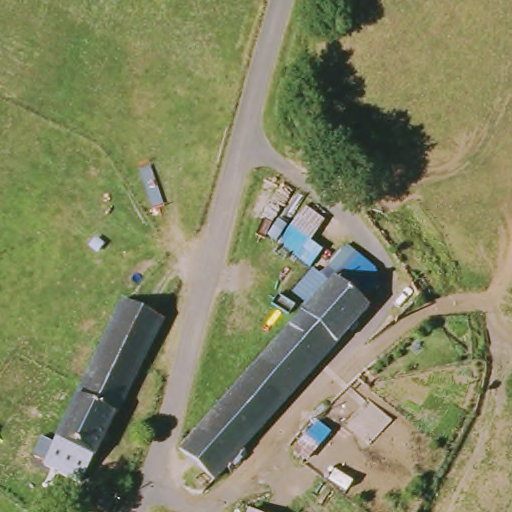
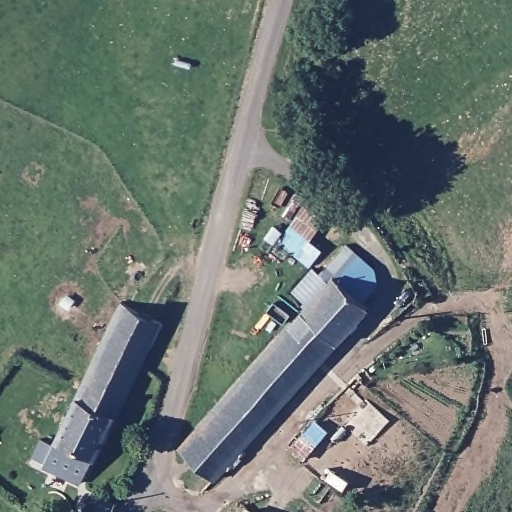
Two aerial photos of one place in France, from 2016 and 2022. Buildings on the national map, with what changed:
unchanged [(311,269),(279,245),(311,208),(330,222),(316,245),(326,254),(311,269)]
unchanged [(377,291),(365,302),(375,311),(333,357),(294,328),(311,310),(296,296),(322,267),(329,273),(351,248),(379,268),(377,291)]
unchanged [(120,410),(81,391),(120,303),(161,320),(120,410)]
unchanged [(333,357),(214,487),(183,455),(294,328),(333,357)]
unchanged [(120,410),(118,413),(115,412),(83,483),(47,467),(81,391),(120,410)]

